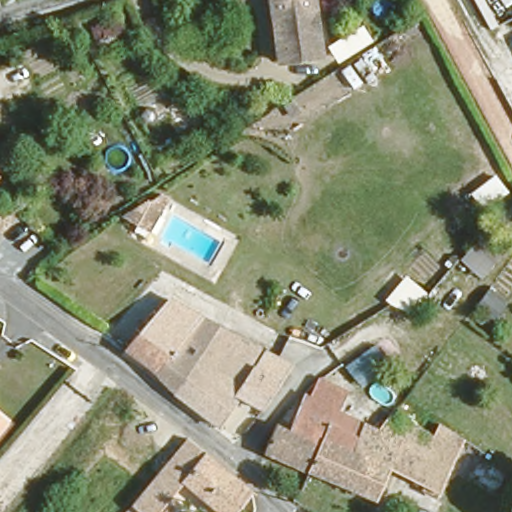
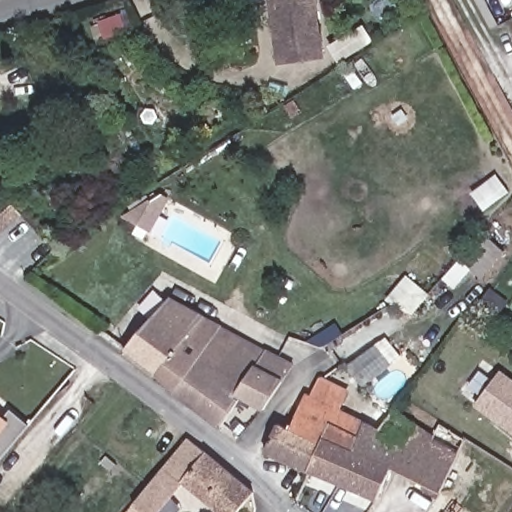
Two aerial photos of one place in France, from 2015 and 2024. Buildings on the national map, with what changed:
unchanged [(279,52),(268,0),(309,0),(318,45),(279,52)]
unchanged [(461,258),(489,232),(508,250),(483,278),(461,258)]
unchanged [(170,390),(154,367),(128,345),(166,296),(289,361),(259,407),(239,394),(219,423),(170,390)]
unchanged [(352,393),(326,372),(362,346),(384,367),(352,393)]
new [(472,405),(499,369),(512,379),(512,434),(472,405)]
unchanged [(335,455),(326,453),(318,450),(306,447),(303,452),(297,464),(254,448),(268,420),(280,422),(283,414),(285,410),(290,397),(294,399),(313,381),(316,382),(338,393),(334,410),(356,420),(336,452),(335,455)]
unchanged [(367,425),(377,430),(391,412),(447,445),(451,441),(479,458),(454,497),(406,470),(388,499),(297,464),(303,452),(306,447),(318,450),(326,453),(335,455),(336,452),(356,420),(367,425)]
unchanged [(0,434),(0,430),(2,432),(0,434)]
unchanged [(228,512),(224,512),(181,478),(152,512),(150,512),(141,505),(148,495),(141,490),(188,430),(249,489),(228,512)]
unchanged [(140,512),(123,512),(130,504),(140,512)]

